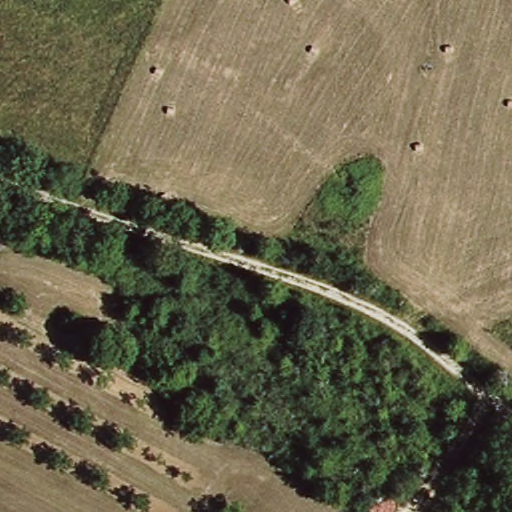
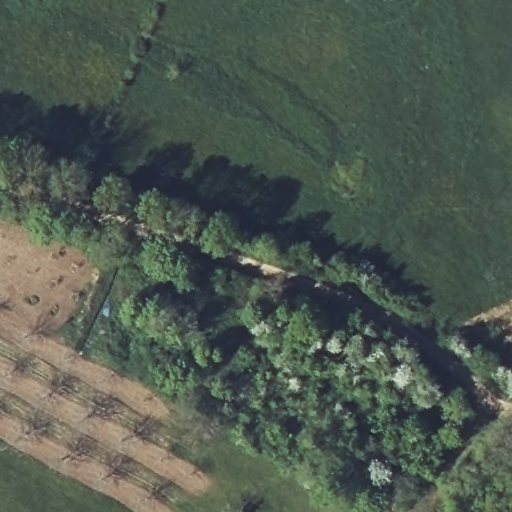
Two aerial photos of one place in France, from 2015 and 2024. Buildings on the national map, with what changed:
[]

